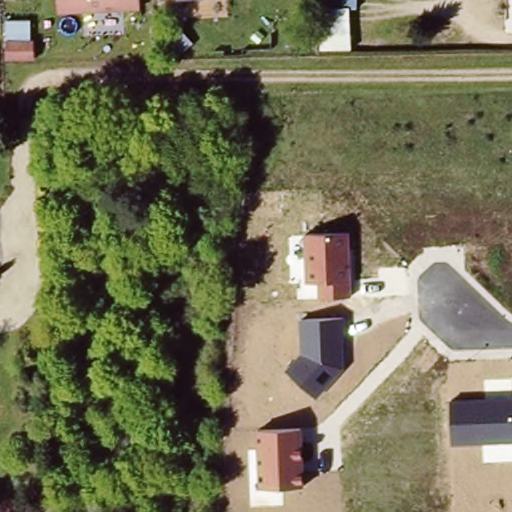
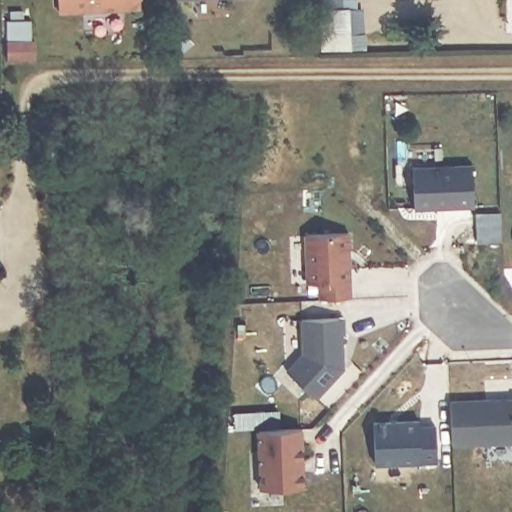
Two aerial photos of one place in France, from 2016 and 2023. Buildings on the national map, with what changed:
unchanged [(58,14),(57,0),(139,0),(140,9),(58,14)]
new [(474,207),(415,210),(412,166),(471,164),(474,207)]
unchanged [(348,233),(350,297),(319,299),(318,283),(306,283),(305,235),(348,233)]
unchanged [(343,318),(344,368),(315,398),(285,370),(302,353),(300,319),(343,318)]
unchanged [(512,442),(452,444),(450,401),(512,397),(512,442)]
new [(420,425),(435,424),(437,462),(374,465),(372,421),(420,419),(420,425)]
unchanged [(300,429),(303,487),(260,488),(257,430),(300,429)]

